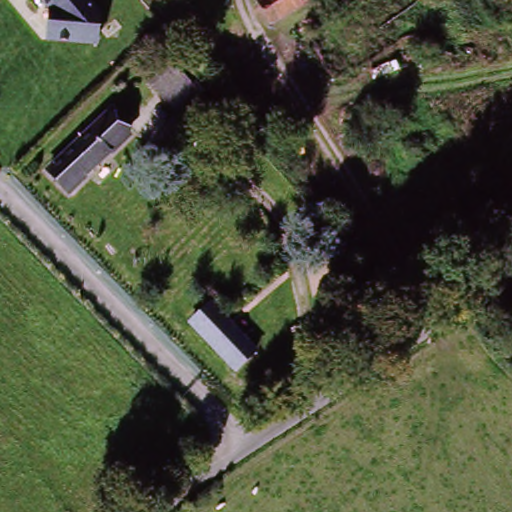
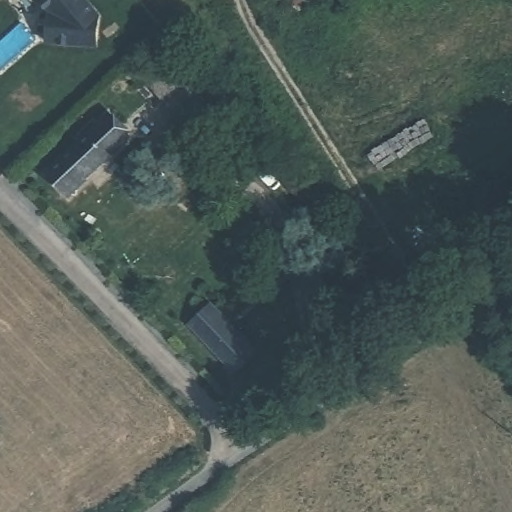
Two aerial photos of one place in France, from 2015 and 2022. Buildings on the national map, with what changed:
unchanged [(97,49),(44,45),(48,13),(37,0),(87,0),(100,15),(97,49)]
unchanged [(251,0),(299,0),(264,24),(250,1),(251,0)]
unchanged [(189,129),(167,105),(156,91),(176,74),(187,86),(209,111),(189,129)]
unchanged [(53,171),(107,119),(113,114),(133,135),(74,193),(53,171)]
unchanged [(257,350),(234,376),(186,325),(212,302),(257,350)]

